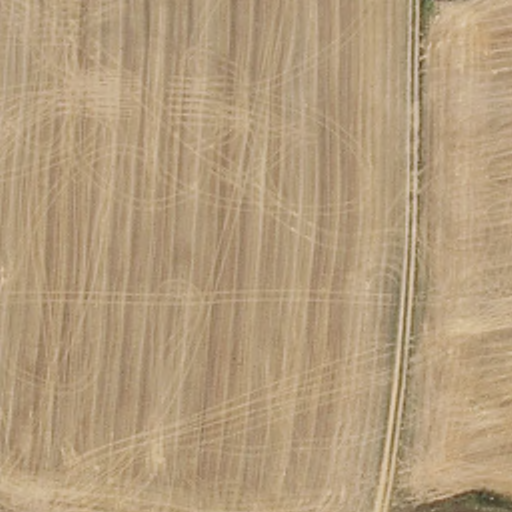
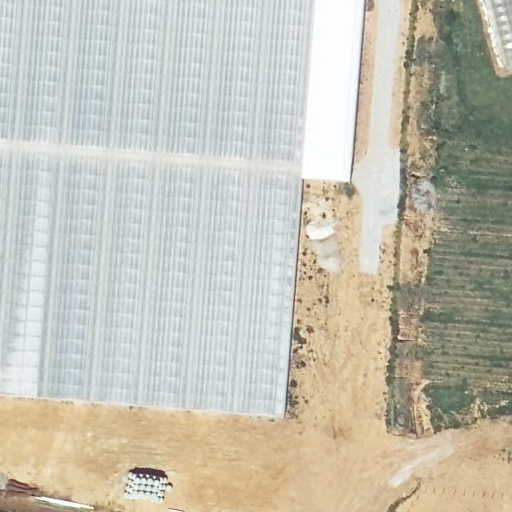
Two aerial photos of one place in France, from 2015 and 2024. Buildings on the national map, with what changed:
new [(351,183),(304,180),(284,417),(0,395),(0,0),(366,0),(351,183)]

